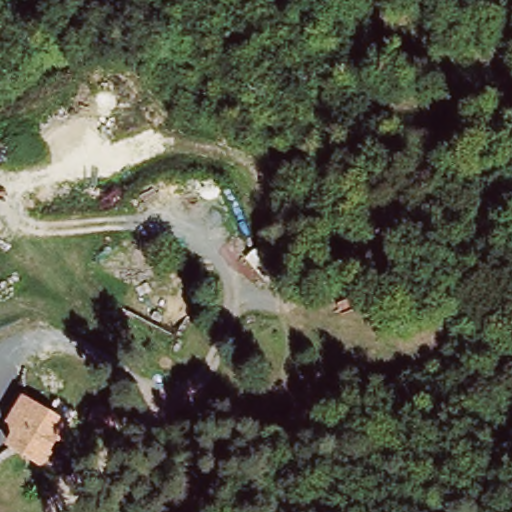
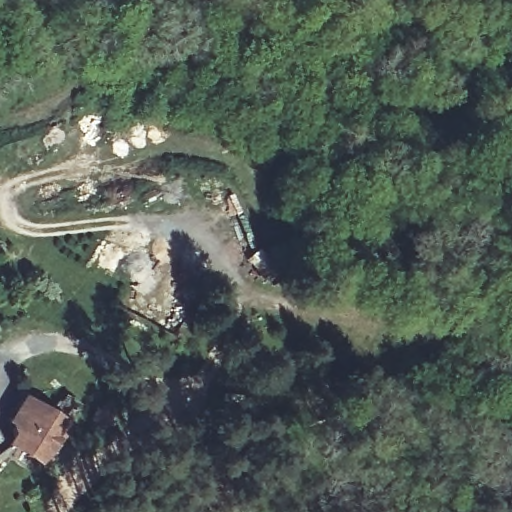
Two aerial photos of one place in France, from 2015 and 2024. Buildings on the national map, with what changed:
unchanged [(43,462),(9,447),(13,438),(11,428),(7,421),(17,400),(28,405),(61,420),(43,462)]

